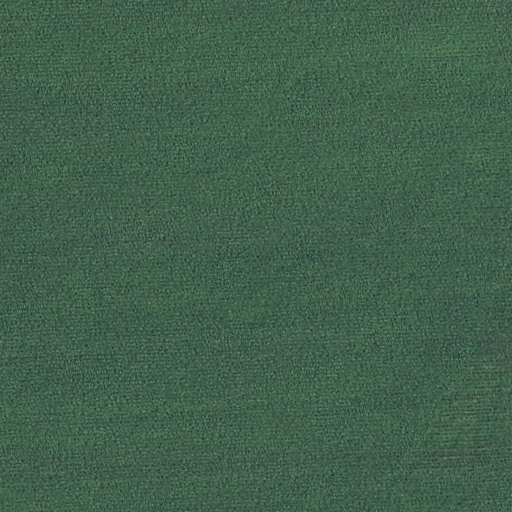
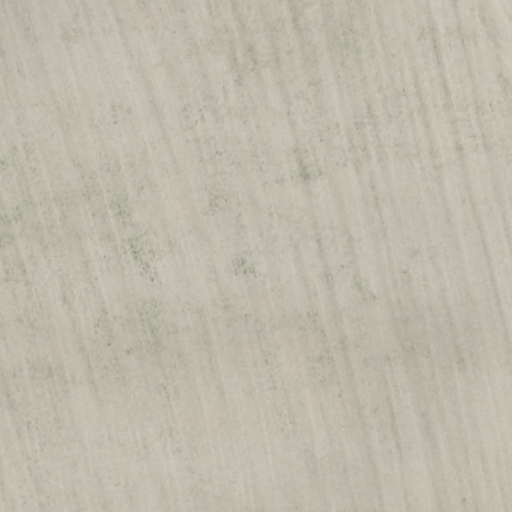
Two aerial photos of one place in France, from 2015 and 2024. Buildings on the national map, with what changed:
[]

